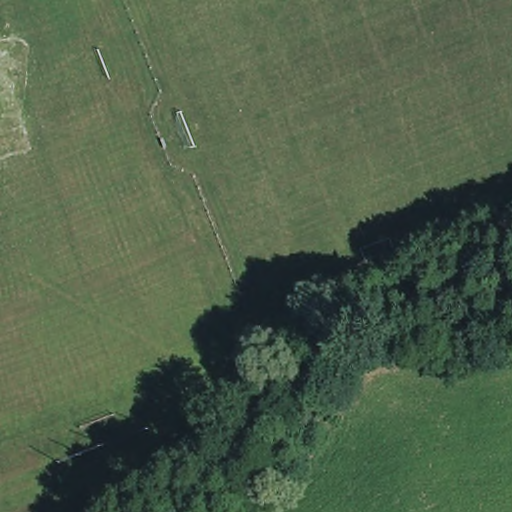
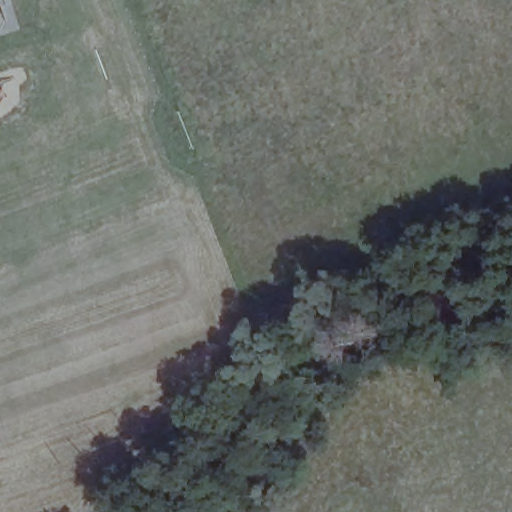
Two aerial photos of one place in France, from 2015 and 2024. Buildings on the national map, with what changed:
[]

